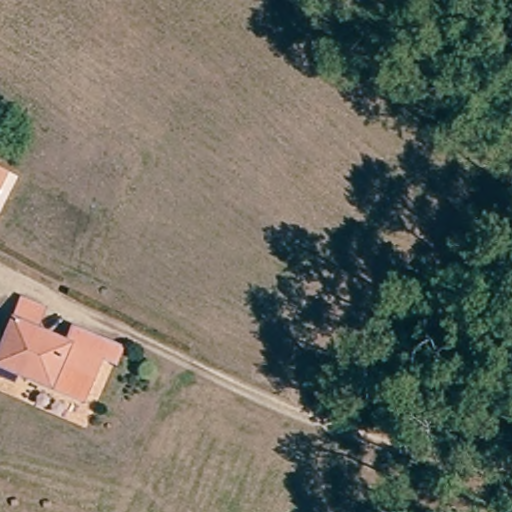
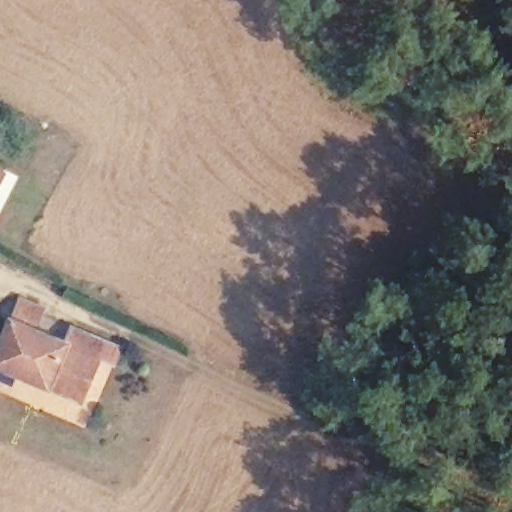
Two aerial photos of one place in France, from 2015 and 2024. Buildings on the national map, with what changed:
unchanged [(0,175),(0,169),(2,170),(0,175)]
unchanged [(24,304),(48,313),(41,327),(61,337),(48,367),(27,357),(16,377),(0,369),(0,355),(24,304)]
unchanged [(124,350),(118,364),(101,356),(76,404),(16,377),(27,357),(48,367),(61,337),(70,324),(124,350)]

